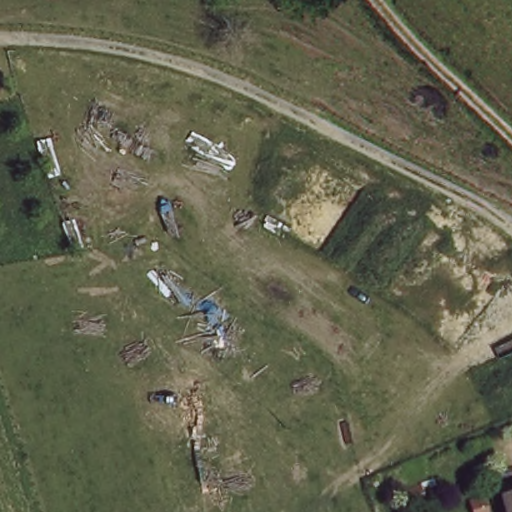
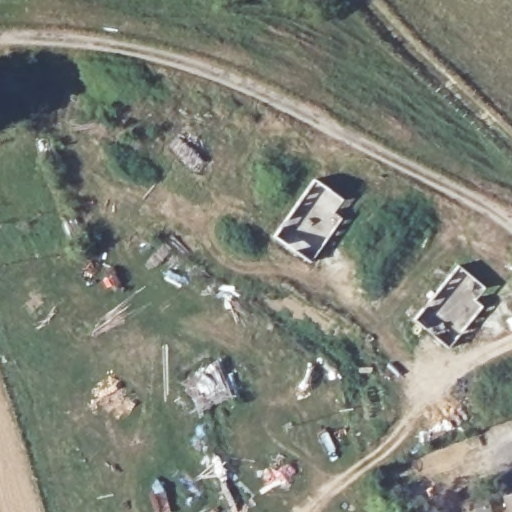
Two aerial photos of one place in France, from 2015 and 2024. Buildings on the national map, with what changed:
new [(341,199),(330,213),(340,218),(308,262),(272,236),(313,180),(341,199)]
new [(482,286),(472,299),(480,306),(446,347),(412,319),(456,266),(482,286)]
unchanged [(512,489),(512,497),(510,490),(512,489)]

